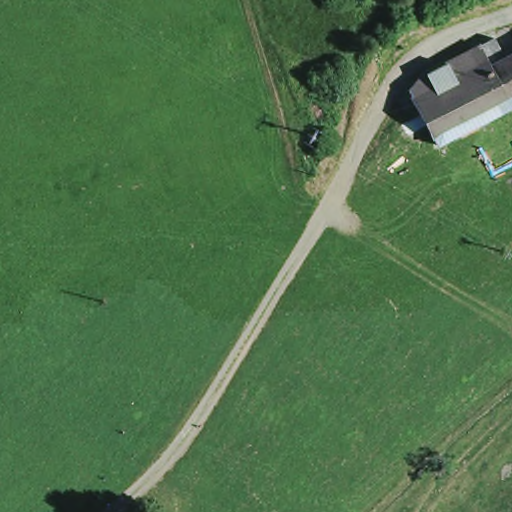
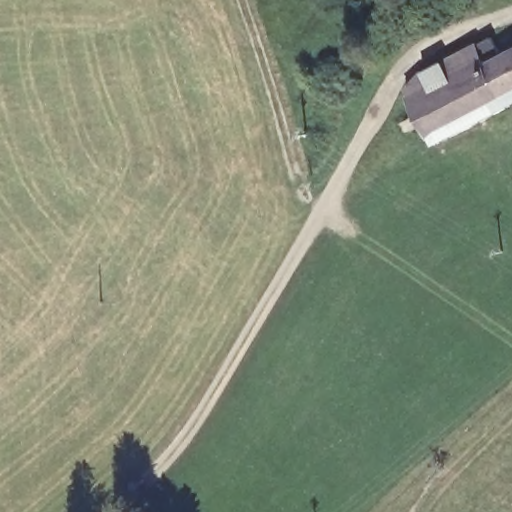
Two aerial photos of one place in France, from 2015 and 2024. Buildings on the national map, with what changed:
unchanged [(425,151),(397,100),(412,84),(481,46),(492,66),(512,56),(512,57),(512,106),(425,151)]

